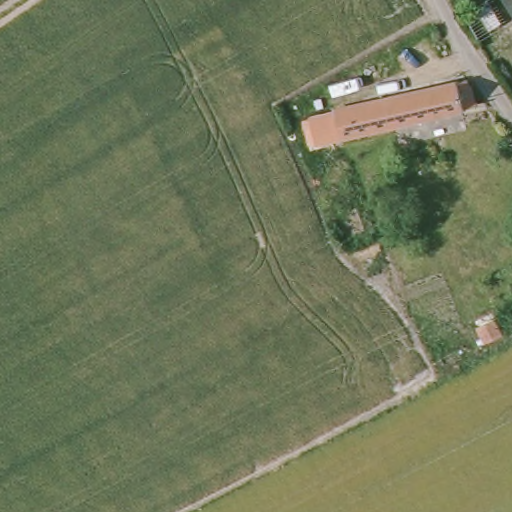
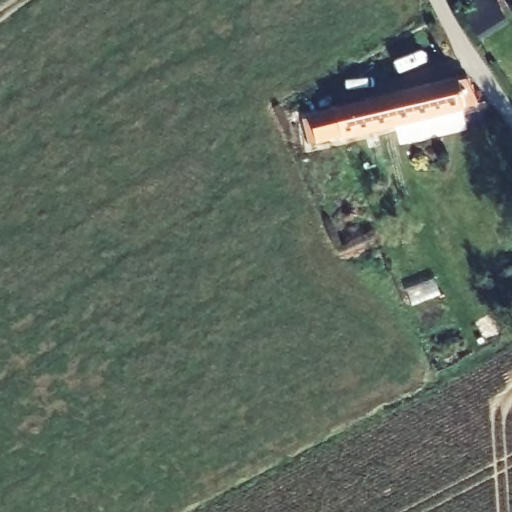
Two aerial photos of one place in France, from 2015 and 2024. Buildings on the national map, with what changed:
unchanged [(509,0),(512,0),(512,5),(509,0)]
unchanged [(397,123),(373,128),(304,146),(296,122),(462,79),(475,101),(397,123)]

